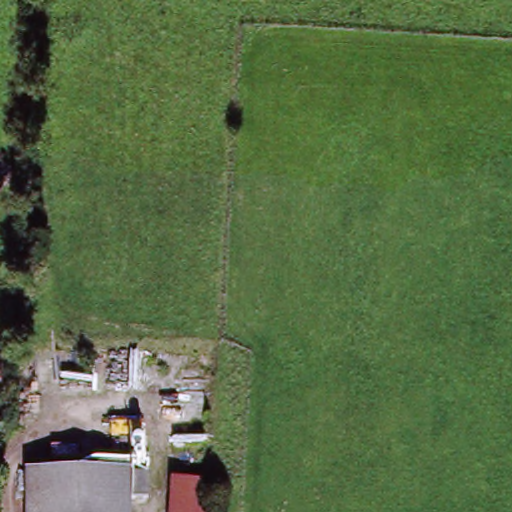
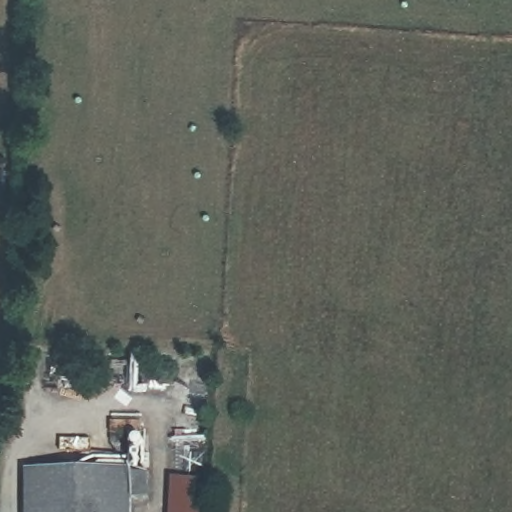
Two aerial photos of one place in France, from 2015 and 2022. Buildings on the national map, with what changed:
unchanged [(28,472),(132,476),(132,477),(132,512),(27,512),(28,475),(28,472)]
unchanged [(214,487),(213,512),(175,512),(176,485),(214,487)]

